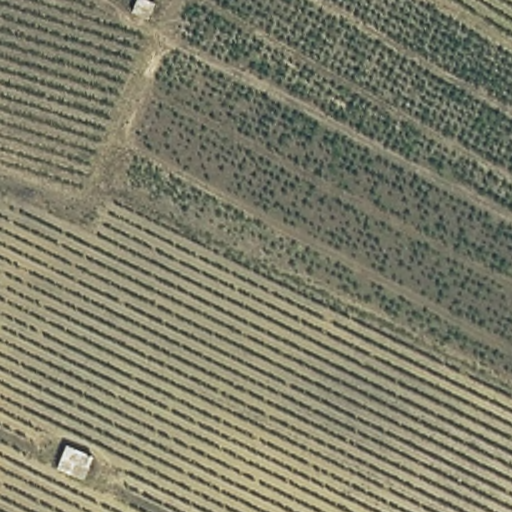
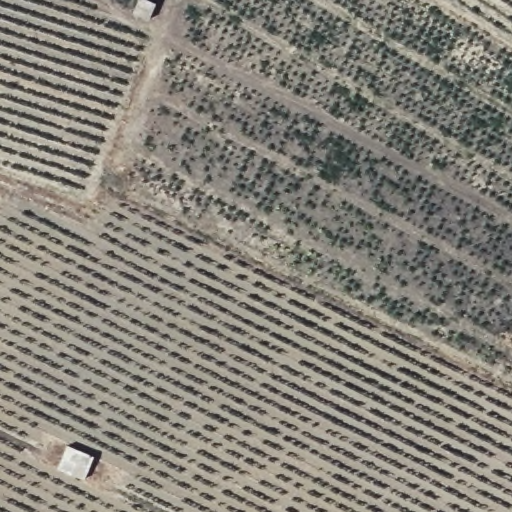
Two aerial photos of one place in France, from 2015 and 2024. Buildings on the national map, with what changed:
unchanged [(149,0),(155,2),(150,20),(132,12),(136,0),(149,0)]
unchanged [(67,445),(93,457),(82,478),(56,467),(67,445)]

